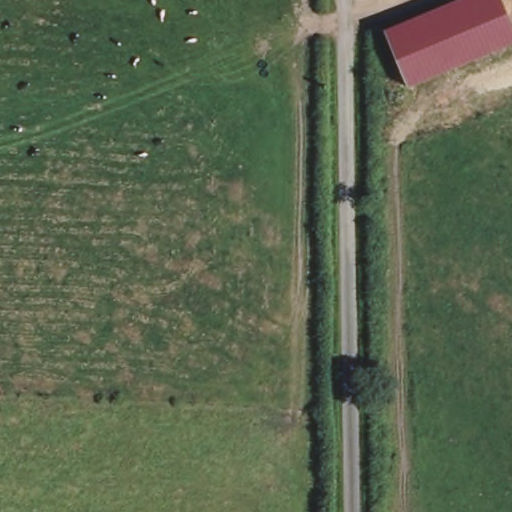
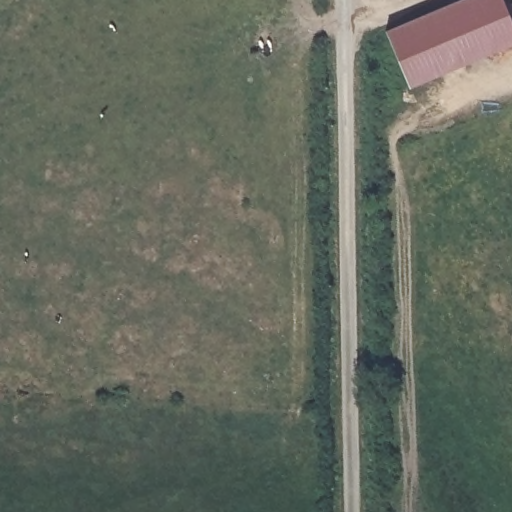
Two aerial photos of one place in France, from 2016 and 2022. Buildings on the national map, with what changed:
unchanged [(512,23),(512,47),(409,88),(386,31),(458,0),(503,0),(512,23)]

